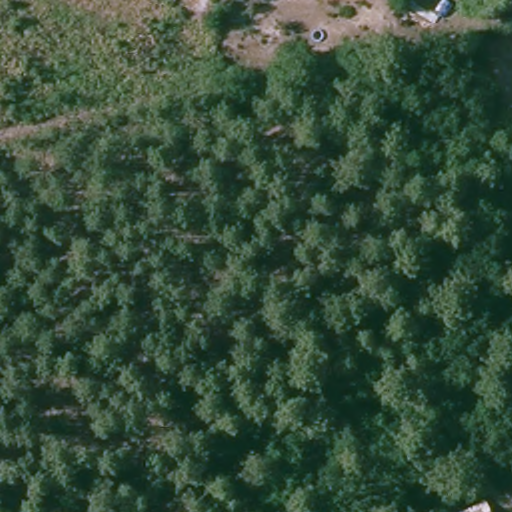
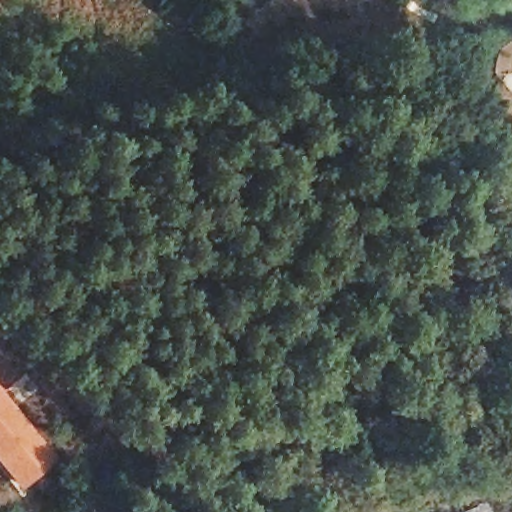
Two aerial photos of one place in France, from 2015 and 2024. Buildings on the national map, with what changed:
new [(22,489),(0,463),(0,388),(59,458),(22,489)]

